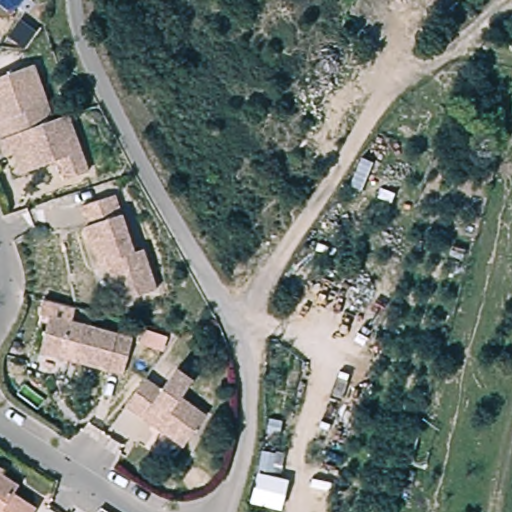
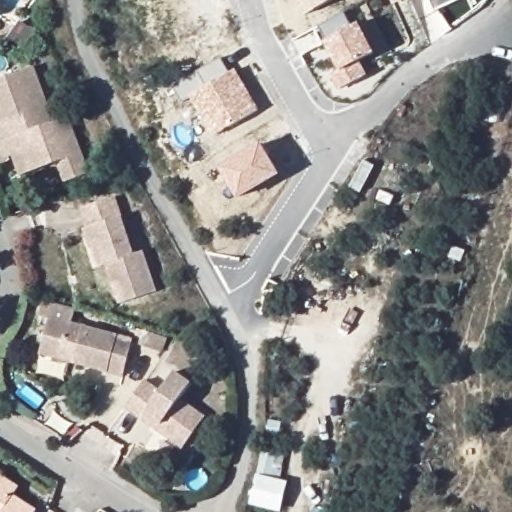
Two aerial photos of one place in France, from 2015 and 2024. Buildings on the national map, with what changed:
new [(316,11),(307,15),(298,0),(336,0),(316,11)]
new [(436,10),(431,0),(459,0),(436,10)]
new [(362,61),(369,75),(339,89),(330,72),(339,68),(325,41),(328,40),(321,26),(347,12),(353,26),(360,22),(377,53),(362,61)]
new [(215,136),(192,97),(183,102),(174,85),(221,57),(230,72),(236,69),(260,110),(215,136)]
unchanged [(6,133),(1,135),(0,133),(0,73),(34,62),(53,119),(6,133)]
unchanged [(13,149),(6,151),(1,135),(6,133),(53,119),(67,115),(86,170),(64,177),(57,157),(27,166),(20,169),(13,149)]
new [(240,199),(220,167),(262,141),(281,174),(240,199)]
unchanged [(99,260),(93,241),(90,241),(84,222),(87,221),(81,201),(112,191),(131,249),(141,245),(155,285),(119,297),(109,265),(106,257),(99,260)]
unchanged [(126,332),(117,368),(33,347),(43,311),(126,332)]
unchanged [(125,401),(139,381),(143,375),(160,387),(175,366),(191,377),(180,394),(205,411),(184,441),(156,422),(142,412),(125,401)]
new [(250,504),(263,450),(281,455),(276,478),(289,481),(281,511),(250,504)]
unchanged [(0,510),(0,476),(15,485),(0,510)]

